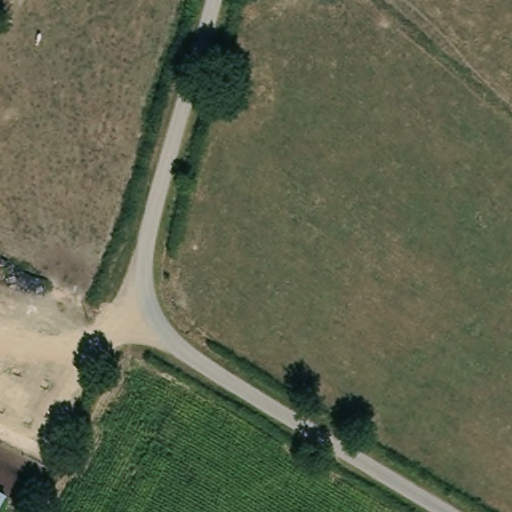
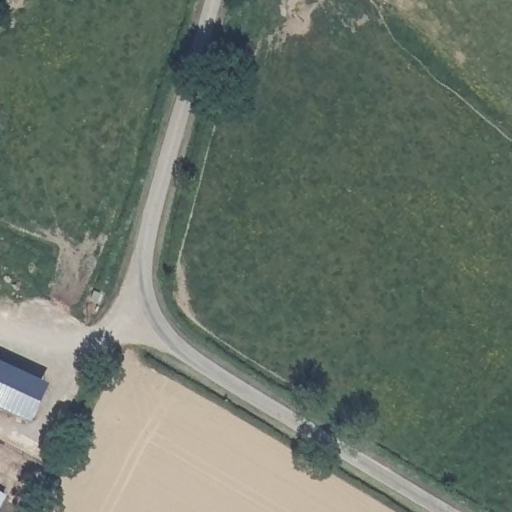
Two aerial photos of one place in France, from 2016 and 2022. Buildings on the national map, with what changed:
new [(28,423),(0,409),(0,364),(47,385),(28,423)]
new [(0,506),(0,493),(5,496),(0,506)]

